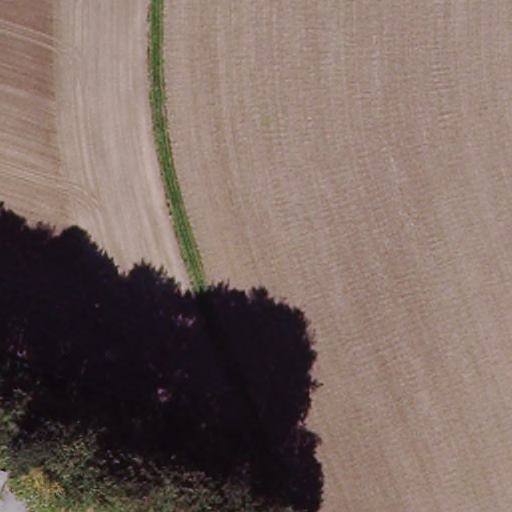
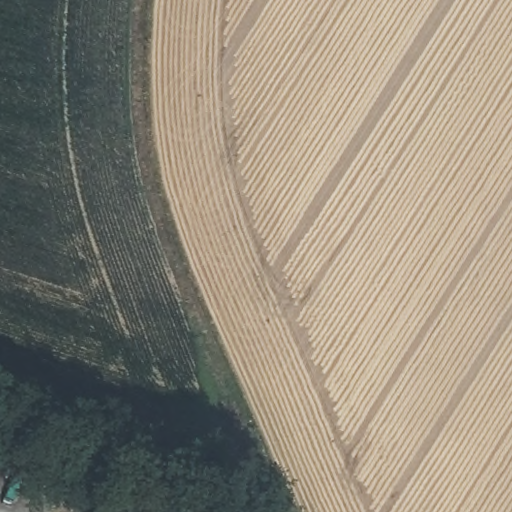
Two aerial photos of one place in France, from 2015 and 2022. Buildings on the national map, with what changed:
unchanged [(153,512),(107,512),(111,498),(153,512)]

